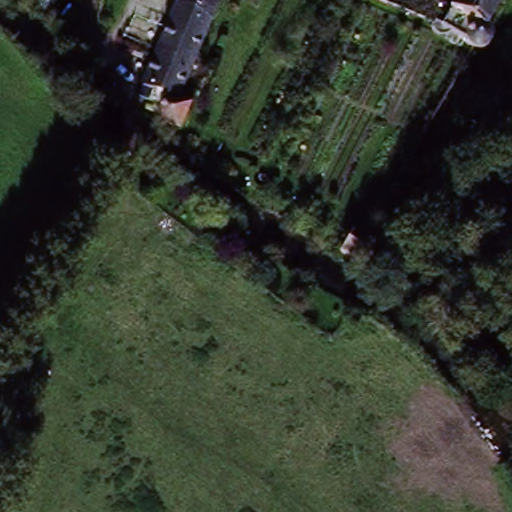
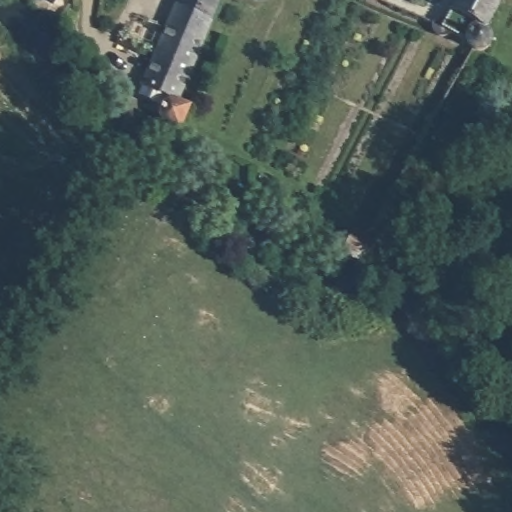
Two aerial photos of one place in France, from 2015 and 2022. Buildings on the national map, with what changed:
unchanged [(54,0),(58,0),(57,2),(54,0)]
unchanged [(140,89),(176,0),(220,0),(175,105),(140,89)]
unchanged [(449,34),(446,37),(442,40),(438,40),(434,40),(430,37),(427,34),(427,30),(427,29),(427,25),(430,21),(445,29),(460,0),(502,0),(488,30),(492,33),(492,35),(494,38),(494,43),(493,48),(490,53),(486,56),(482,57),(476,58),(471,56),(467,53),(465,50),(463,38),(452,33),(450,31),(449,32),(449,34)]
unchanged [(157,119),(158,114),(161,110),(165,107),(170,105),(175,105),(187,110),(176,134),(160,132),(159,130),(157,125),(157,119)]
unchanged [(354,228),(365,236),(370,239),(371,252),(365,258),(354,259),(340,249),(354,228)]

